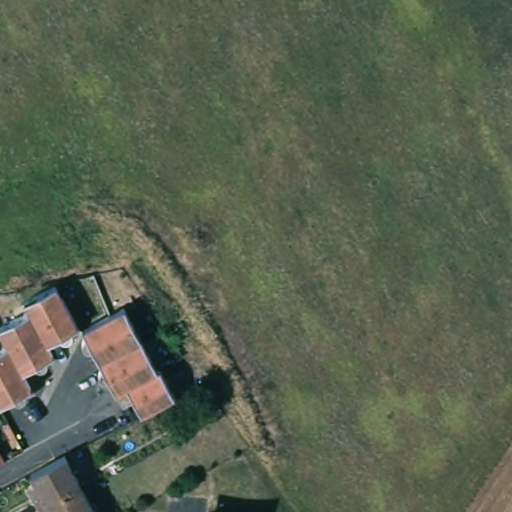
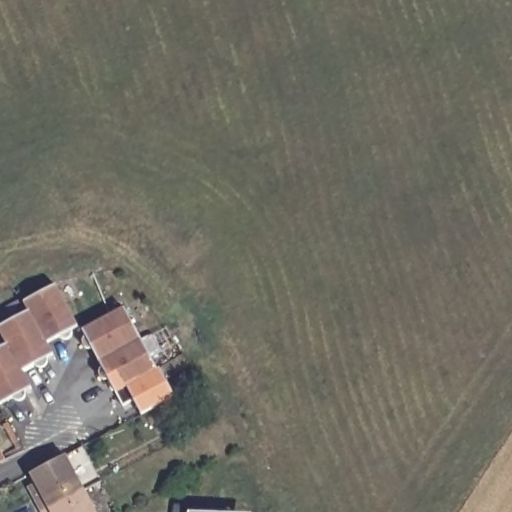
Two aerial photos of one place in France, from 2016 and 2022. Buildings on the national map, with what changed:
unchanged [(0,329),(0,324),(28,308),(23,300),(54,283),(76,324),(46,342),(52,351),(21,369),(30,384),(0,402),(0,345),(6,341),(0,329)]
unchanged [(81,327),(112,310),(123,304),(139,334),(156,366),(157,366),(159,365),(174,393),(141,411),(133,397),(122,403),(114,388),(97,357),(81,327)]
unchanged [(0,464),(0,453),(4,461),(0,464)]
unchanged [(34,492),(39,489),(31,473),(60,457),(78,492),(62,501),(43,510),(34,492)]
unchanged [(43,510),(62,501),(78,492),(89,512),(44,512),(43,510)]

